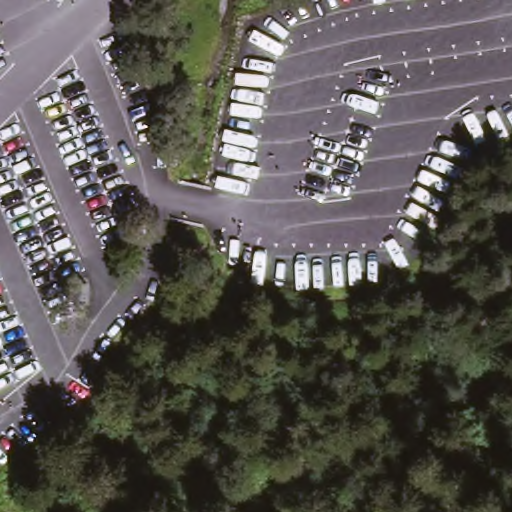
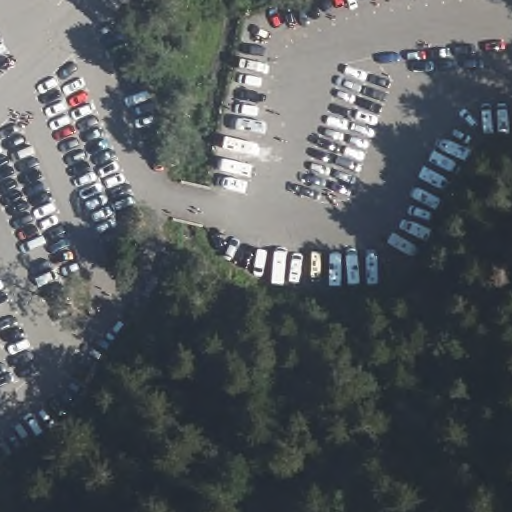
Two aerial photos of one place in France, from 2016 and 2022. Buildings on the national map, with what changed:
[]

